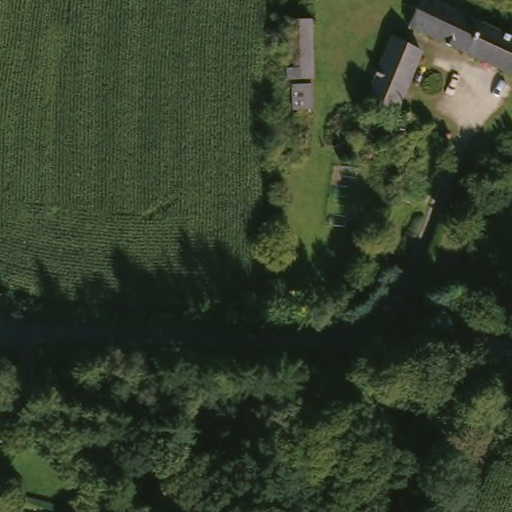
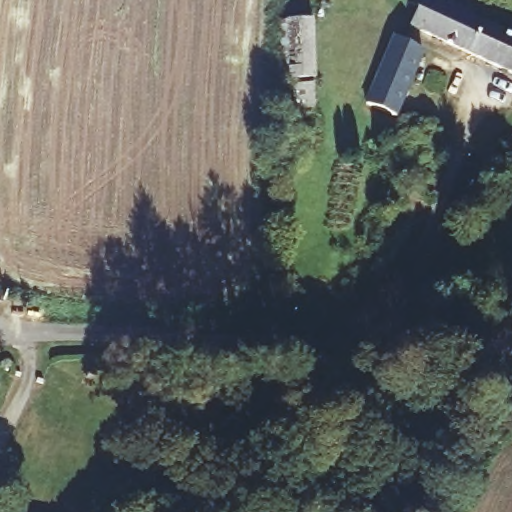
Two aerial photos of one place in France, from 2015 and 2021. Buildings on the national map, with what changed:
unchanged [(406,30),(422,0),(425,0),(512,44),(512,84),(406,30)]
unchanged [(308,78),(280,79),(278,25),(306,24),(308,78)]
unchanged [(421,54),(391,117),(361,104),(391,39),(421,54)]
unchanged [(307,84),(308,109),(288,109),(287,85),(307,84)]
unchanged [(443,143),(424,182),(405,172),(424,133),(443,143)]
unchanged [(504,174),(512,161),(512,180),(504,174)]

